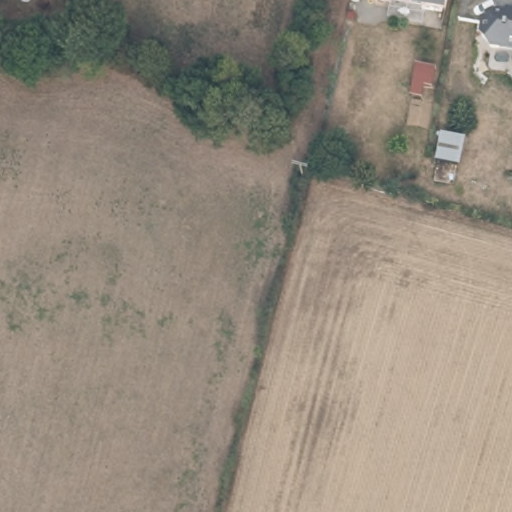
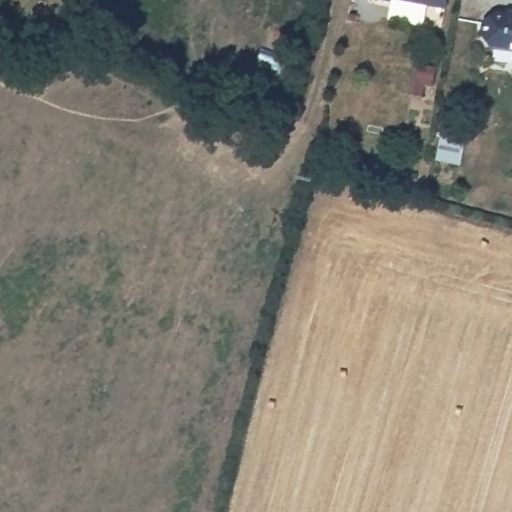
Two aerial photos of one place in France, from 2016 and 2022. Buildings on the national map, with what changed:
unchanged [(495,39),(491,36),(488,31),(487,24),(487,19),(489,14),(493,10),(499,6),(509,7),(512,3),(512,41),(495,39)]
unchanged [(439,126),(468,131),(464,161),(436,157),(439,126)]

